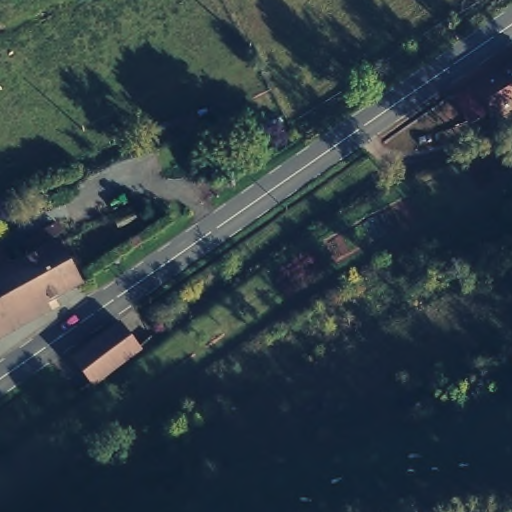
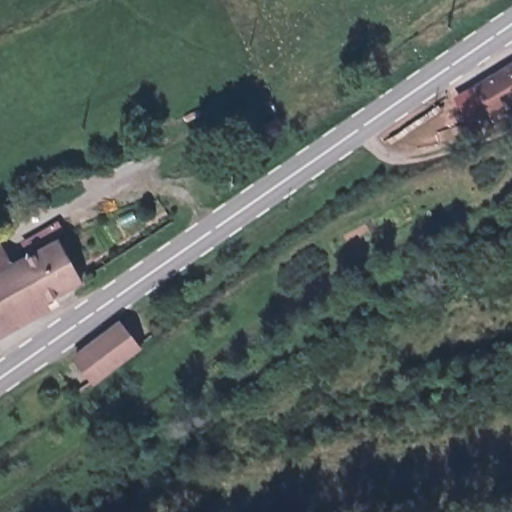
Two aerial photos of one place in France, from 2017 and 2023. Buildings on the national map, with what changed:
unchanged [(472,85),(512,61),(512,103),(492,112),(472,85)]
unchanged [(60,248),(82,289),(0,332),(0,250),(2,249),(15,272),(60,248)]
unchanged [(140,353),(94,384),(72,353),(120,322),(140,353)]

